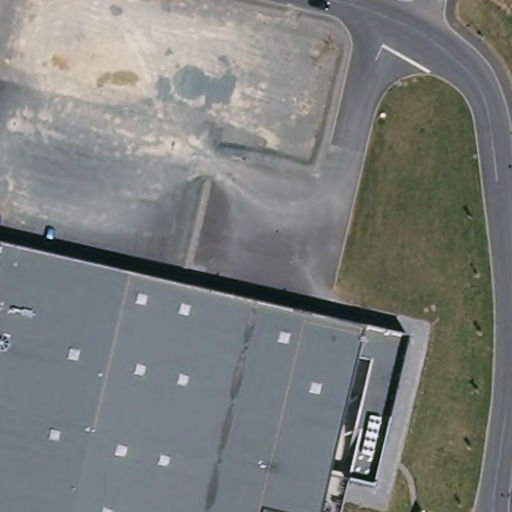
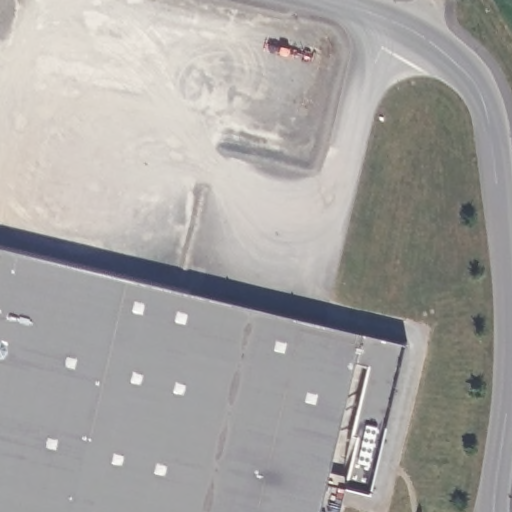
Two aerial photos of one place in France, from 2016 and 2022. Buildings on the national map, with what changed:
unchanged [(361,331),(406,342),(372,492),(347,484),(358,433),(353,431),(368,362),(355,356),(327,479),(320,512),(0,512),(0,246),(361,331)]

